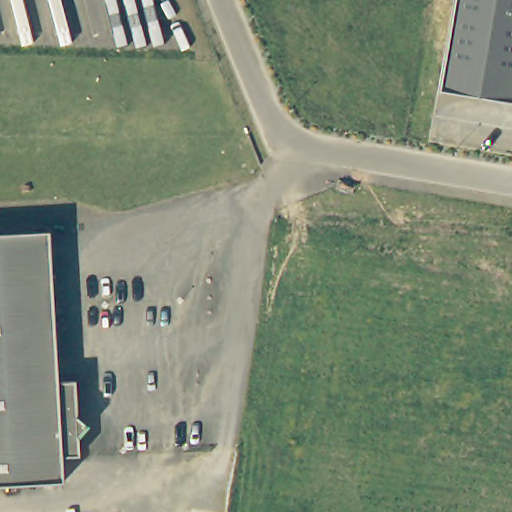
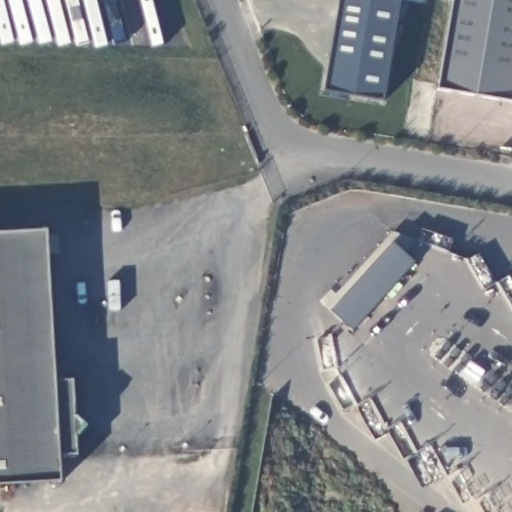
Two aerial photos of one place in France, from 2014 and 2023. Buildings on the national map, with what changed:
new [(383,100),(325,91),(342,0),(388,0),(400,2),(383,100)]
unchanged [(436,86),(451,0),(512,0),(512,100),(436,86)]
unchanged [(76,382),(77,416),(90,427),(80,439),(80,457),(63,458),(65,484),(0,488),(0,235),(49,232),(58,383),(76,382)]
new [(330,312),(392,243),(415,263),(353,332),(330,312)]

